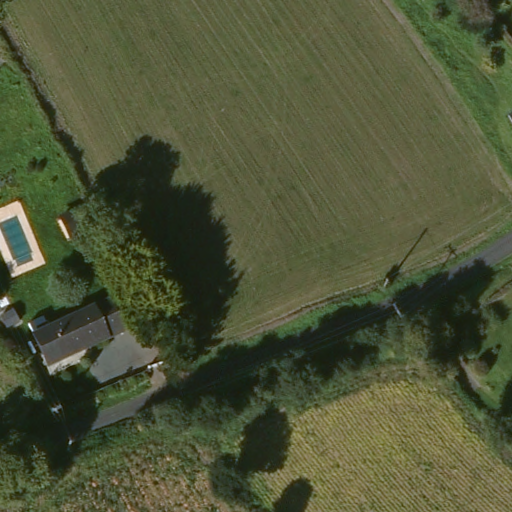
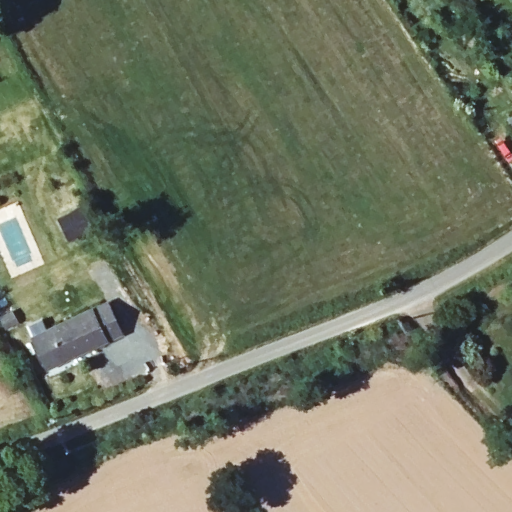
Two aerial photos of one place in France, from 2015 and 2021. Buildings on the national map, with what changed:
unchanged [(113,300),(127,333),(49,364),(36,331),(113,300)]

